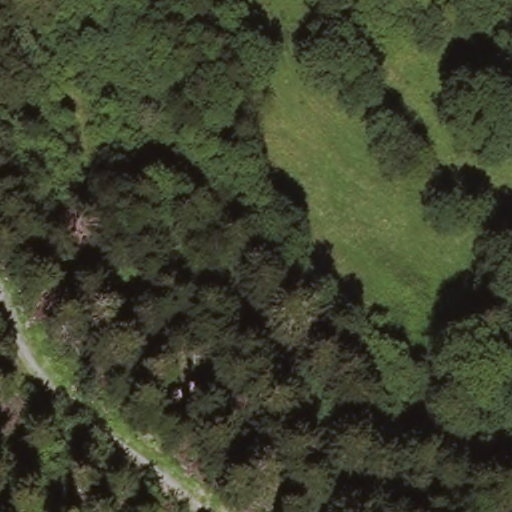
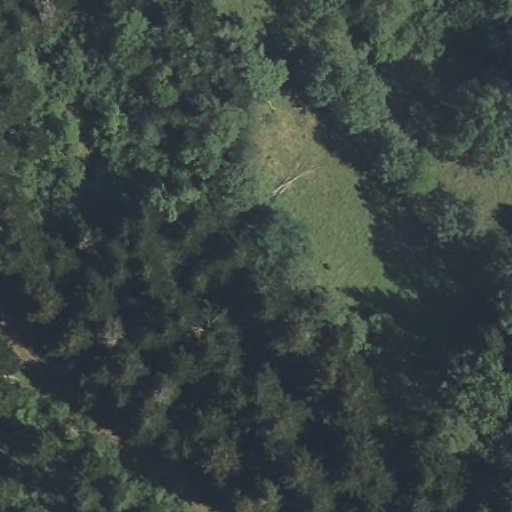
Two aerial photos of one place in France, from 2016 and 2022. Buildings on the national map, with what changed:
[]

